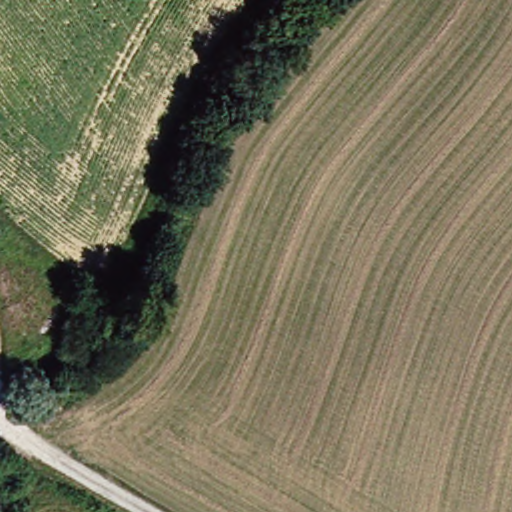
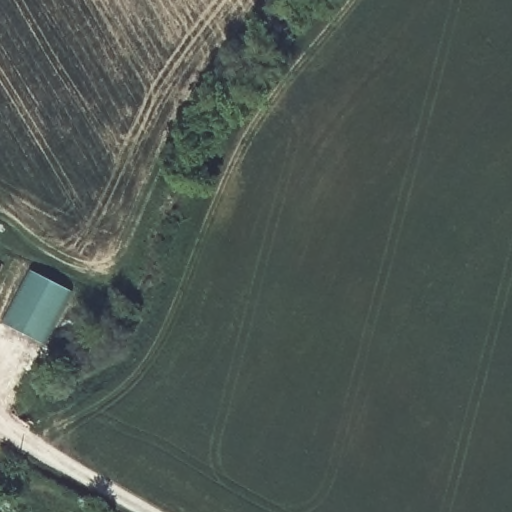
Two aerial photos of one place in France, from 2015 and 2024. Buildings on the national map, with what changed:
new [(44,343),(2,322),(29,270),(73,291),(44,343)]

